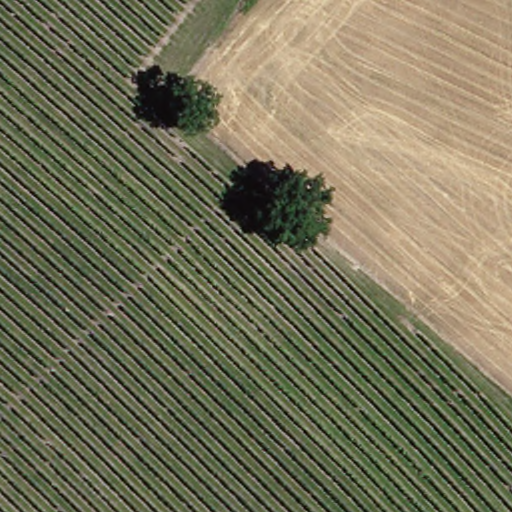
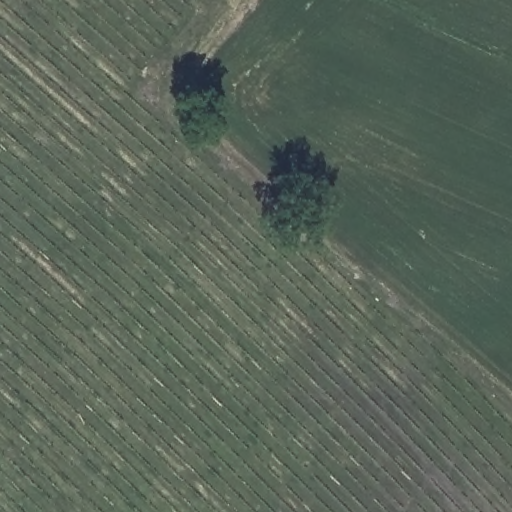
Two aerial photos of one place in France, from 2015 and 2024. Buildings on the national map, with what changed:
[]

